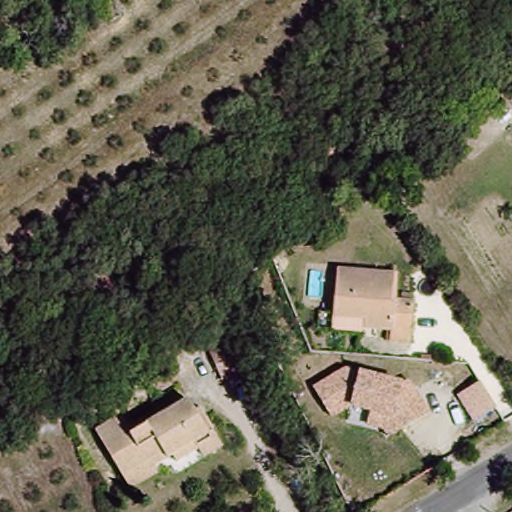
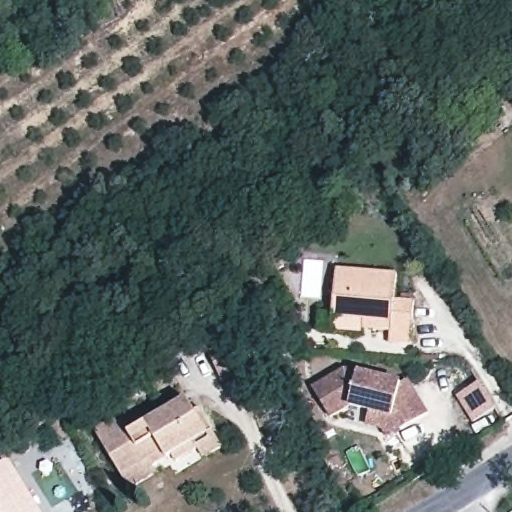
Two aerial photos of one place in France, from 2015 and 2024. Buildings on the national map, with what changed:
unchanged [(325,166),(315,153),(330,143),(338,155),(325,166)]
unchanged [(334,337),(332,318),(327,277),(384,268),(387,293),(410,292),(414,333),(391,335),(389,324),(376,324),(375,314),(364,315),(366,335),(334,337)]
unchanged [(238,360),(217,373),(203,347),(223,333),(238,360)]
unchanged [(313,386),(346,367),(359,370),(402,382),(410,378),(429,413),(387,436),(383,430),(367,425),(370,412),(352,407),(332,417),(313,386)]
unchanged [(457,395),(480,380),(496,407),(473,421),(457,395)]
unchanged [(118,418),(130,436),(187,402),(197,417),(209,411),(224,443),(182,467),(175,459),(159,469),(153,461),(122,477),(96,431),(118,418)]
new [(37,512),(3,512),(0,506),(0,471),(10,466),(37,512)]

